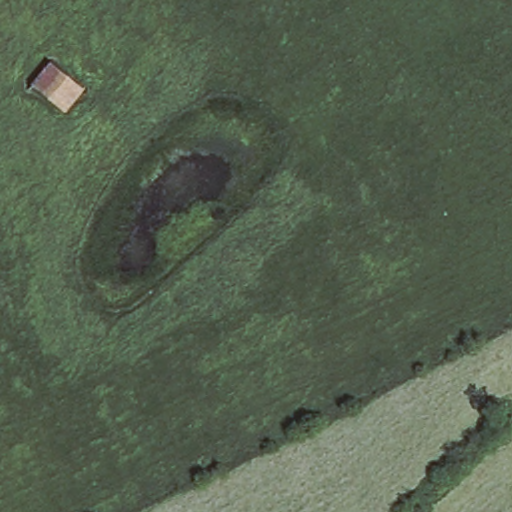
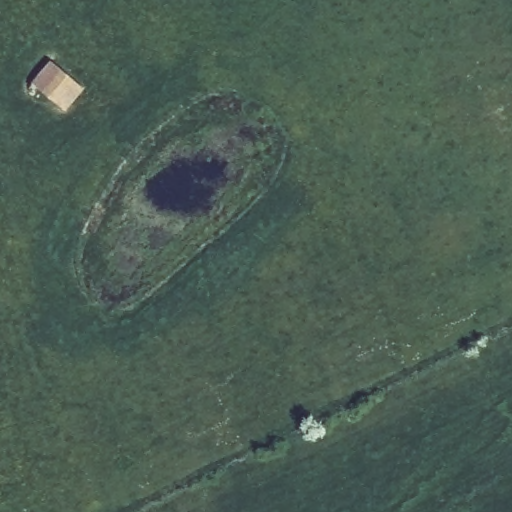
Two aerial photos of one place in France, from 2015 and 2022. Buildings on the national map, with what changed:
unchanged [(61,108),(31,83),(50,60),(80,86),(61,108)]

